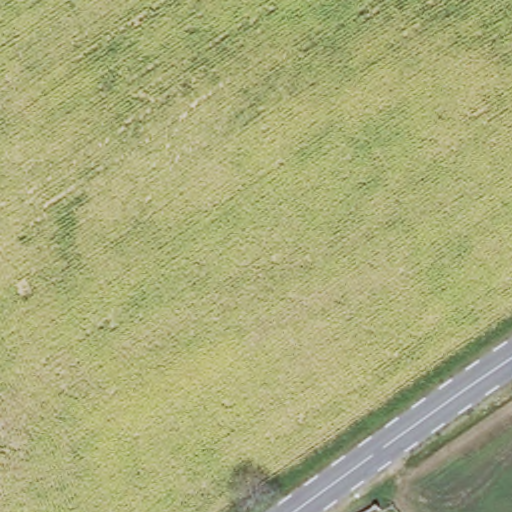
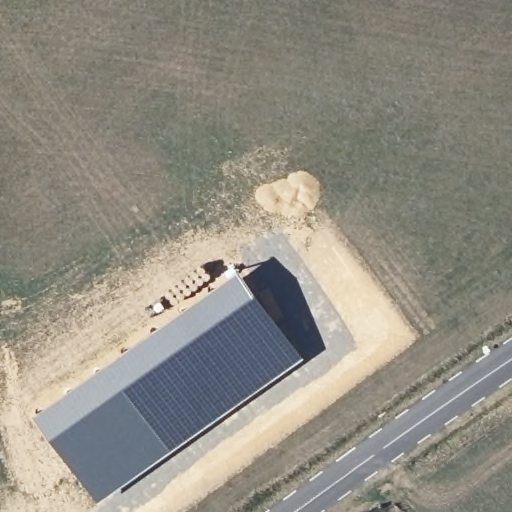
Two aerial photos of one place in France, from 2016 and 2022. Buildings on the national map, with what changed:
new [(238,276),(302,360),(98,501),(35,420),(238,276)]

